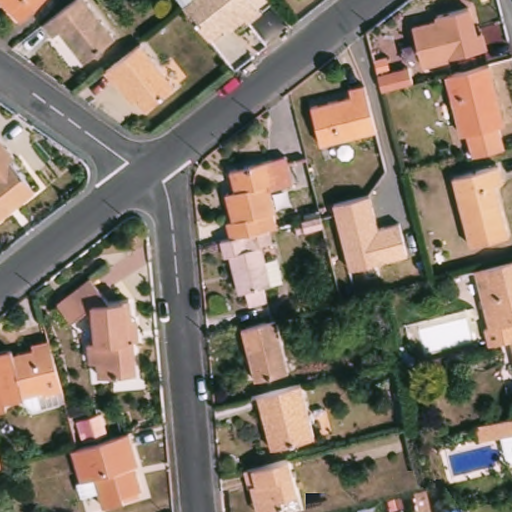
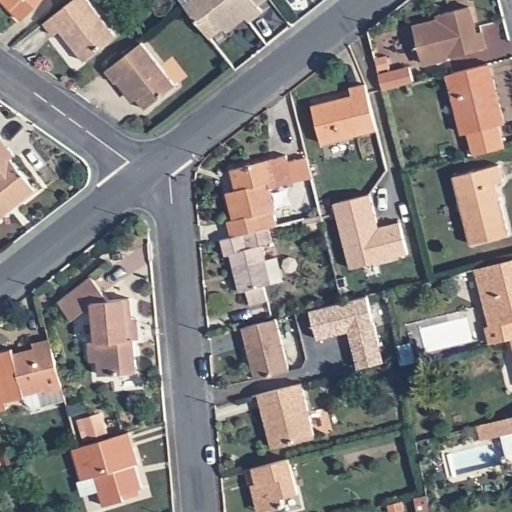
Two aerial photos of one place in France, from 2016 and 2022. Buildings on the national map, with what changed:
unchanged [(0,0),(40,0),(21,20),(0,0)]
unchanged [(87,64),(62,32),(56,37),(47,26),(79,0),(88,0),(118,39),(87,64)]
unchanged [(182,9),(192,0),(263,0),(255,7),(259,12),(245,24),(237,15),(207,40),(182,10),(182,9)]
unchanged [(423,59),(416,31),(442,23),(440,17),(470,10),(477,36),(483,34),(487,50),(450,60),(425,65),(423,59)]
unchanged [(177,92),(148,116),(124,86),(117,91),(107,77),(144,49),(177,92)]
unchanged [(406,65),(410,80),(381,87),(377,72),(406,65)]
unchanged [(505,123),(465,133),(450,77),(491,67),(505,123)]
unchanged [(311,110),(350,100),(347,92),(363,88),(374,132),(318,147),(311,110)]
unchanged [(0,217),(0,139),(37,190),(0,217)]
unchanged [(226,226),(232,225),(226,197),(235,195),(229,171),(272,161),(285,157),(291,182),(277,186),(271,187),(278,216),(273,216),(277,229),(271,230),(244,237),(230,240),(226,226)]
unchanged [(500,169),(505,184),(497,186),(510,238),(473,247),(457,180),(500,169)]
unchanged [(333,202),(372,195),(378,227),(400,223),(407,255),(352,268),(333,202)]
unchanged [(322,225),(306,229),(303,217),(320,214),(322,225)]
unchanged [(271,230),(275,245),(263,247),(273,287),(267,289),(271,303),(252,308),(248,293),(240,296),(231,256),(224,257),(221,242),(230,240),(244,237),(271,230)]
unchanged [(487,330),(493,328),(492,325),(493,325),(480,271),(512,263),(512,341),(491,346),(487,330)]
unchanged [(142,341),(136,342),(139,373),(101,377),(99,361),(91,362),(89,344),(97,343),(95,321),(87,312),(72,323),(59,305),(92,280),(110,303),(132,301),(134,321),(140,320),(142,341)]
new [(356,367),(352,352),(347,329),(316,337),(308,307),(365,293),(378,346),(382,361),(356,367)]
unchanged [(286,375),(255,382),(241,330),(273,322),(286,375)]
unchanged [(11,355),(32,348),(31,343),(49,338),(62,387),(66,401),(27,413),(22,398),(4,404),(6,410),(0,411),(0,353),(10,350),(11,355)]
unchanged [(263,410),(260,392),(301,382),(314,435),(278,445),(273,446),(263,410)]
unchanged [(512,417),(512,436),(483,442),(479,422),(512,417)]
unchanged [(143,464),(140,465),(147,488),(127,495),(129,502),(109,508),(99,478),(87,482),(77,451),(84,448),(133,433),(143,464)]
unchanged [(252,489),(249,490),(244,472),(287,462),(297,497),(283,501),(286,510),(277,512),(258,512),(252,489)]
unchanged [(412,496),(425,492),(429,512),(417,512),(412,496)]

